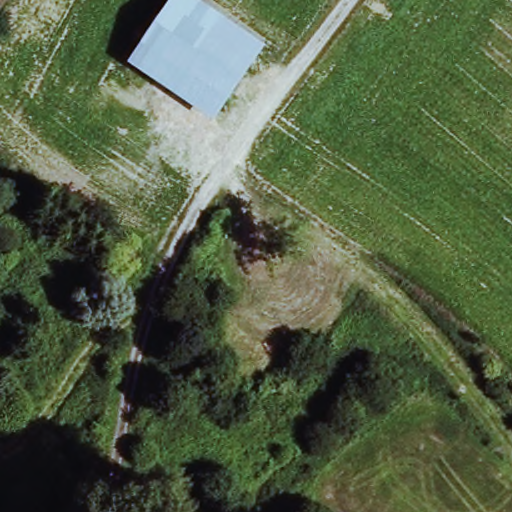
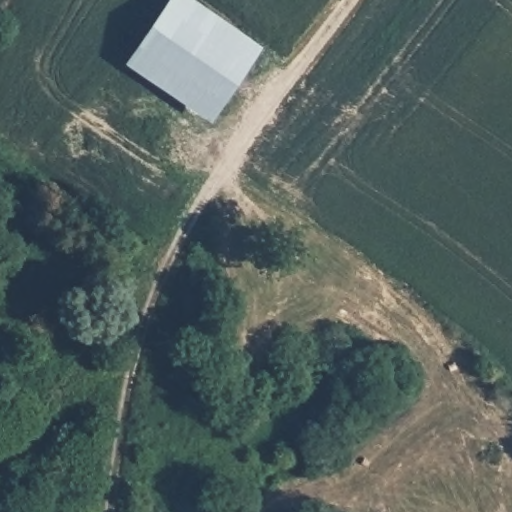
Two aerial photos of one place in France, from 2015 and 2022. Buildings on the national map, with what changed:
unchanged [(211,116),(131,62),(173,0),(185,0),(256,49),(211,116)]

